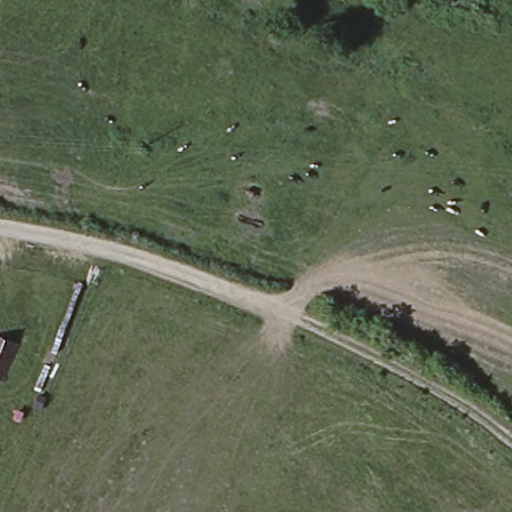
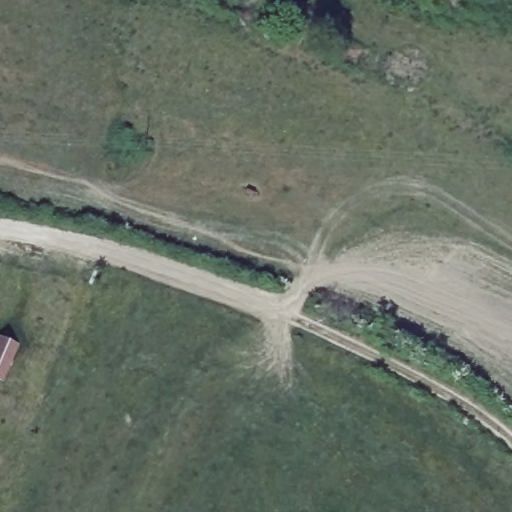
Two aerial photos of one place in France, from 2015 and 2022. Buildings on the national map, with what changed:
unchanged [(20,343),(4,380),(0,379),(0,335),(20,343)]

